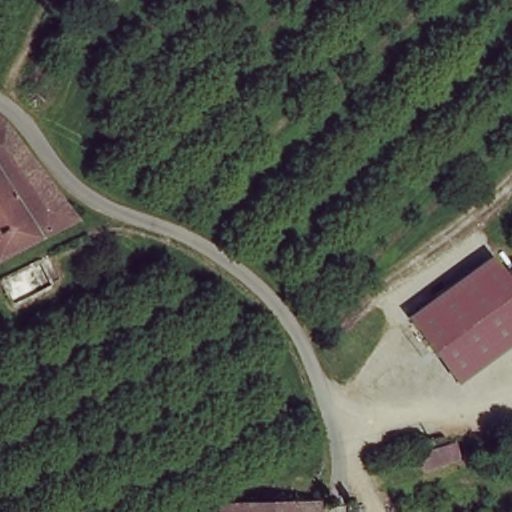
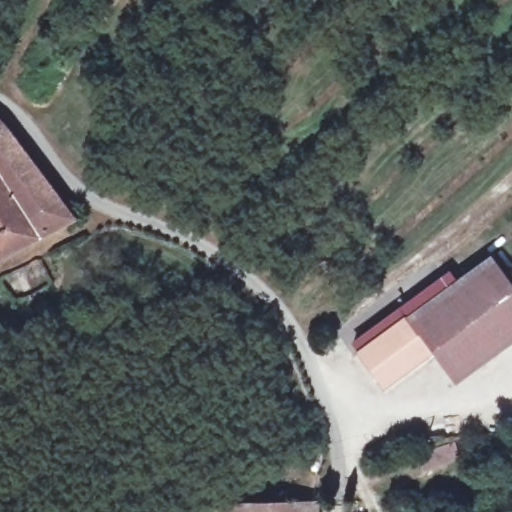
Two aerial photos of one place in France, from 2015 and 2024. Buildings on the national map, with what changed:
unchanged [(36,150),(0,170),(0,116),(5,114),(7,114),(10,114),(18,125),(36,150)]
unchanged [(84,215),(45,233),(8,250),(0,238),(0,170),(36,150),(84,215)]
unchanged [(512,288),(512,342),(456,383),(429,348),(405,317),(489,254),(512,288)]
new [(429,348),(434,354),(383,391),(355,352),(405,317),(429,348)]
unchanged [(250,502),(318,494),(321,512),(223,512),(222,504),(250,502)]

